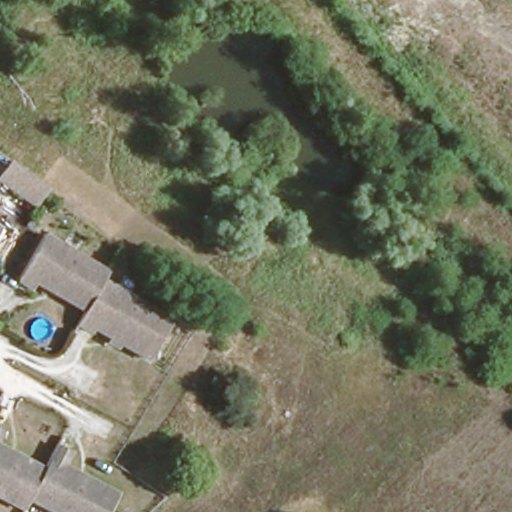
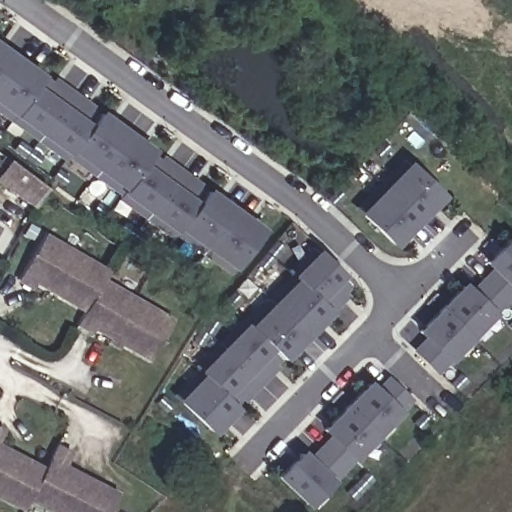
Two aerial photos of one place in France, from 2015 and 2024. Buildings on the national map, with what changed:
new [(182,226),(179,230),(126,192),(129,188),(75,148),(71,154),(17,113),(0,101),(0,47),(43,78),(57,87),(60,85),(86,103),(83,106),(97,116),(100,113),(153,152),(151,156),(165,165),(166,162),(194,182),(191,187),(205,195),(207,191),(262,229),(236,265),(182,226)]
unchanged [(0,183),(0,172),(10,158),(49,187),(36,209),(0,183)]
new [(406,161),(443,197),(394,248),(357,212),(406,161)]
unchanged [(0,228),(0,227),(1,227),(0,228)]
unchanged [(49,290),(51,285),(46,282),(42,287),(27,278),(25,284),(8,275),(35,231),(101,266),(97,271),(79,304),(49,290)]
new [(437,369),(416,350),(428,338),(421,330),(465,285),(472,292),(496,269),(487,261),(509,238),(512,241),(512,291),(437,369)]
new [(336,296),(340,300),(283,359),(280,356),(267,368),(270,372),(249,394),(245,390),(232,403),(236,407),(213,431),(177,396),(200,372),(195,368),(241,318),(246,322),(290,276),(287,271),(311,247),(348,283),(336,296)]
unchanged [(85,328),(82,332),(67,325),(79,304),(97,271),(171,310),(141,359),(85,328)]
new [(311,505),(282,476),(303,454),(309,460),(310,461),(334,436),(327,429),(371,384),(377,391),(390,379),(410,399),(311,505)]
unchanged [(47,442),(66,454),(61,466),(112,492),(101,512),(46,512),(20,499),(15,508),(0,501),(0,448),(37,465),(47,442)]

